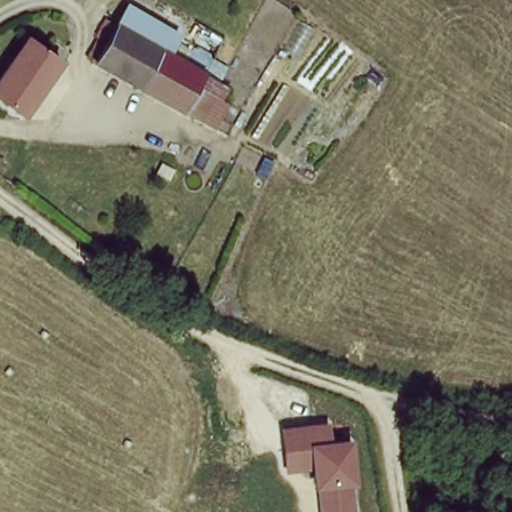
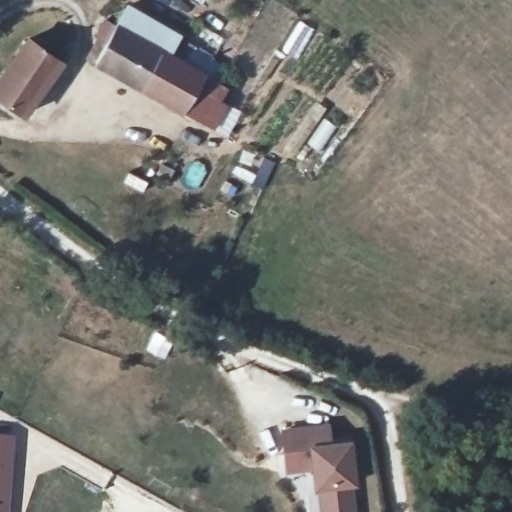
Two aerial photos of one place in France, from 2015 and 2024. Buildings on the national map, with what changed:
unchanged [(141,9),(228,56),(217,77),(130,29),(141,9)]
unchanged [(217,77),(240,90),(232,101),(210,90),(196,114),(110,67),(121,46),(112,40),(121,23),(130,29),(217,77)]
unchanged [(26,111),(0,94),(0,76),(28,33),(62,56),(26,111)]
unchanged [(332,442),(352,440),(355,486),(351,486),(353,512),(316,512),(310,470),(285,473),(280,429),(329,423),(332,442)]
new [(0,512),(0,434),(15,435),(8,512),(0,512)]

